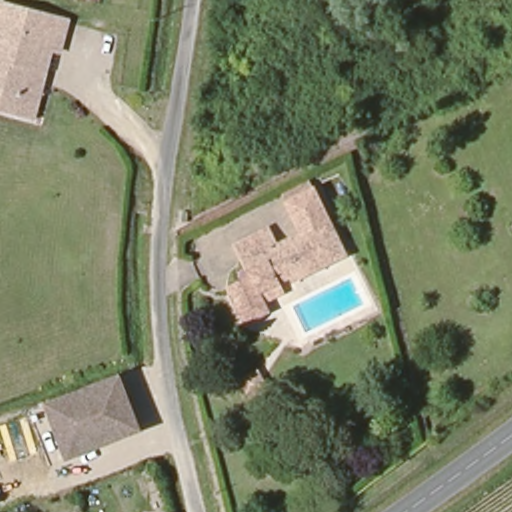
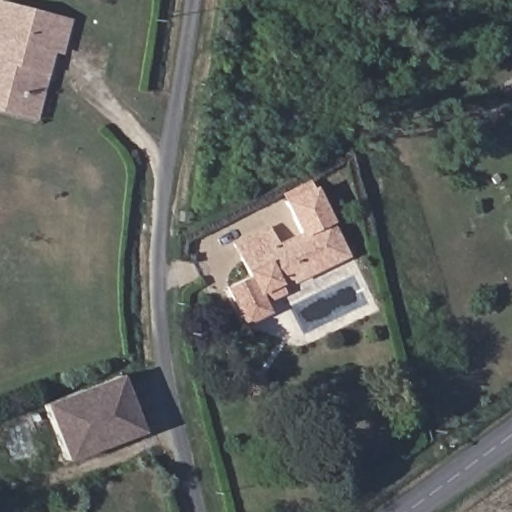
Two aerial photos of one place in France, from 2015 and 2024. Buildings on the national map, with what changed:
unchanged [(19,114),(0,109),(0,19),(4,4),(73,21),(65,53),(56,51),(50,73),(39,119),(19,114)]
unchanged [(274,306),(280,318),(254,331),(235,293),(259,282),(242,248),(277,233),(285,248),(310,236),(293,203),(291,199),(317,186),(320,191),(354,261),(300,287),(297,282),(285,288),(290,299),(274,306)]
unchanged [(255,373),(263,388),(249,396),(240,381),(255,373)]
unchanged [(151,432),(76,461),(55,406),(128,377),(151,432)]
unchanged [(106,487),(82,496),(81,492),(105,483),(106,487)]

